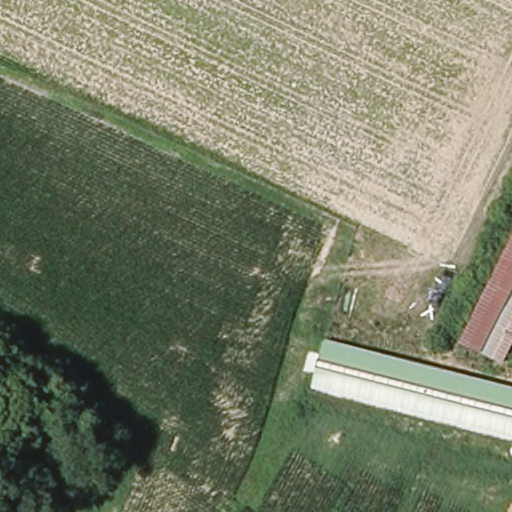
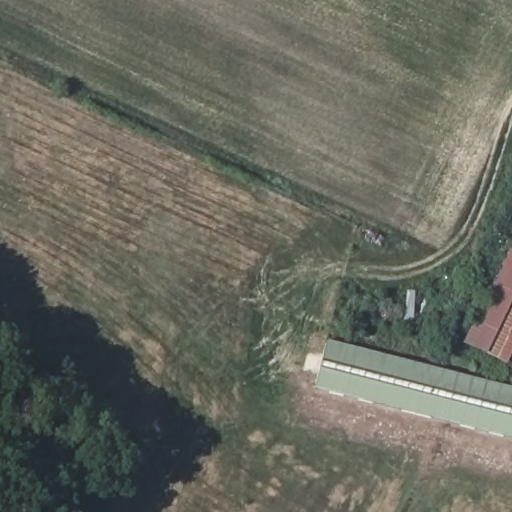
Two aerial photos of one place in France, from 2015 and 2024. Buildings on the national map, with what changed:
unchanged [(509,365),(460,339),(512,232),(512,359),(509,365)]
unchanged [(315,389),(327,340),(512,387),(512,438),(315,389)]

